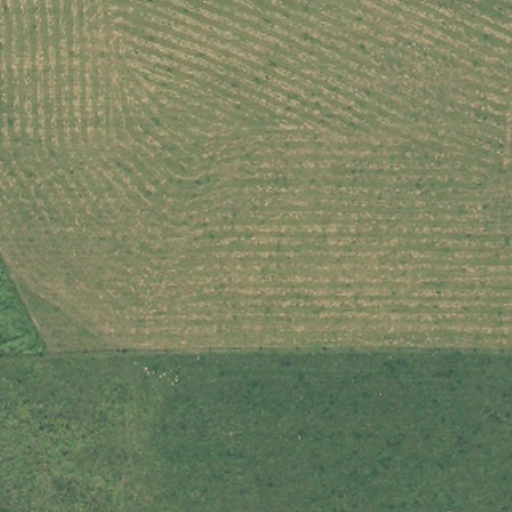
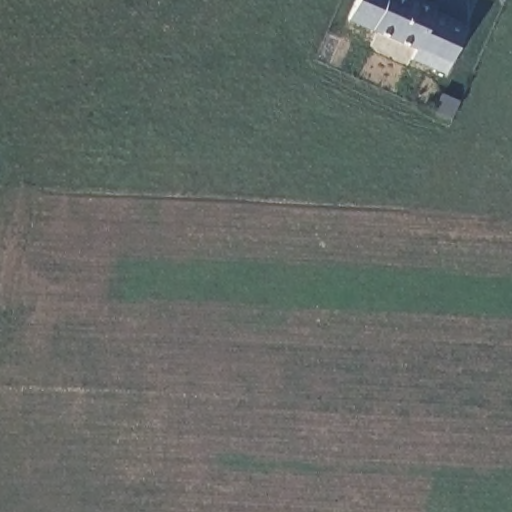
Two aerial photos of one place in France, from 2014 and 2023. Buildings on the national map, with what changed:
new [(411,61),(415,49),(349,20),(359,0),(408,0),(434,11),(467,25),(445,75),(411,61)]

